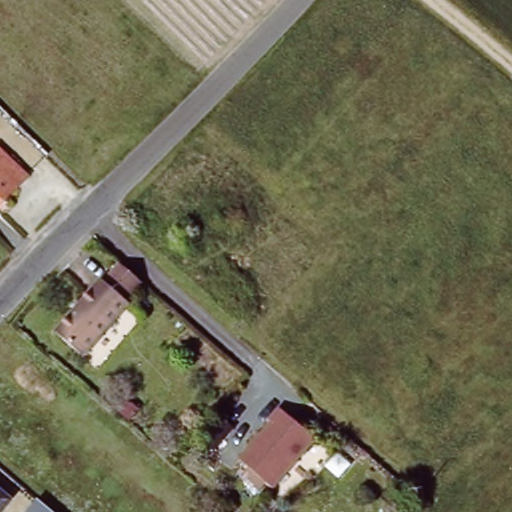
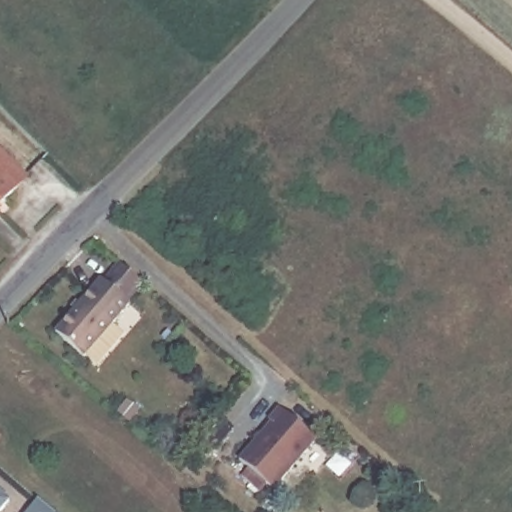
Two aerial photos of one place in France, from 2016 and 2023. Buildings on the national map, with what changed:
unchanged [(25,186),(0,211),(0,161),(25,186)]
unchanged [(87,353),(58,328),(105,276),(107,278),(123,260),(147,279),(130,297),(134,301),(87,353)]
unchanged [(271,416),(281,405),(318,437),(276,485),(243,456),(276,420),(271,416)]
unchanged [(34,512),(40,503),(50,512),(34,512)]
unchanged [(1,512),(0,512),(0,508),(3,510),(1,512)]

